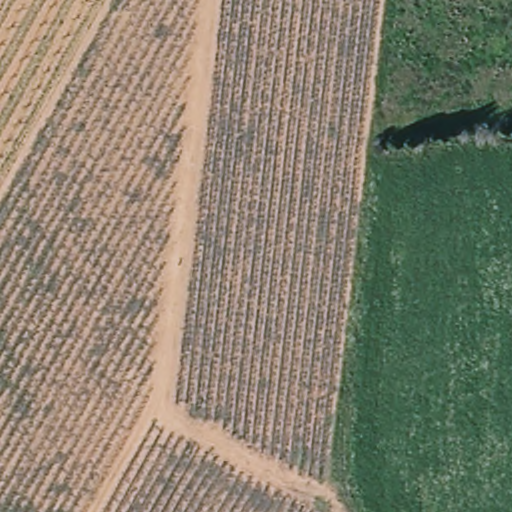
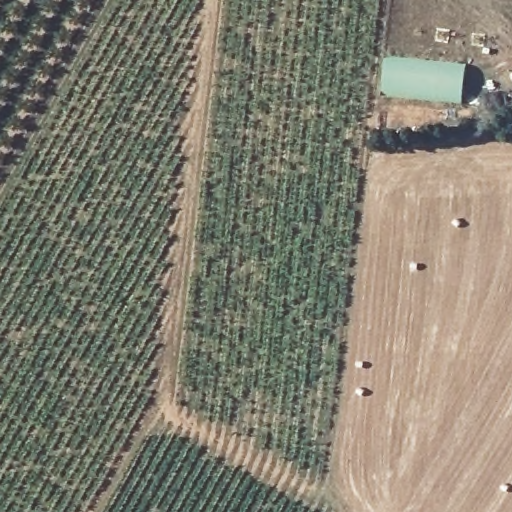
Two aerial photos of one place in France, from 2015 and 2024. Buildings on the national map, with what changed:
new [(383,95),(385,61),(466,68),(463,102),(383,95)]

